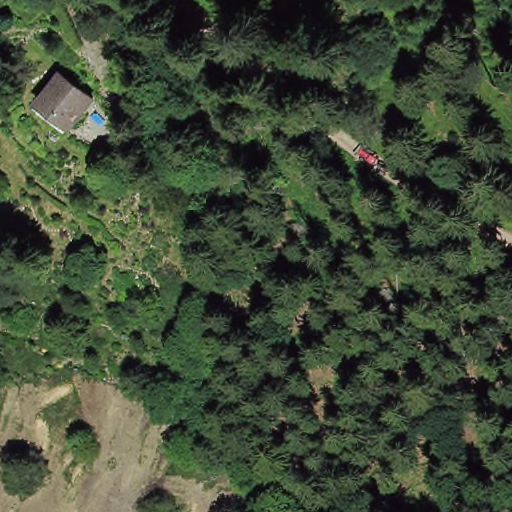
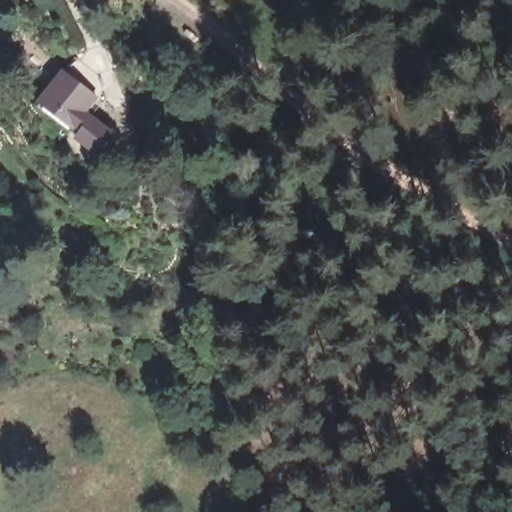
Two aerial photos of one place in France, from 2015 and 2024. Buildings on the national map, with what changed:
unchanged [(70,135),(32,110),(63,73),(72,80),(98,101),(79,125),(70,135)]

